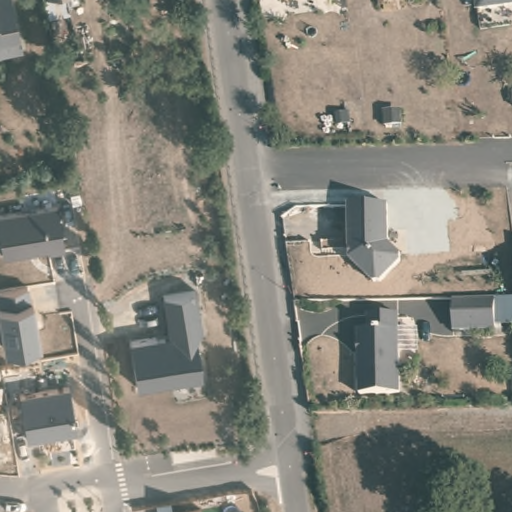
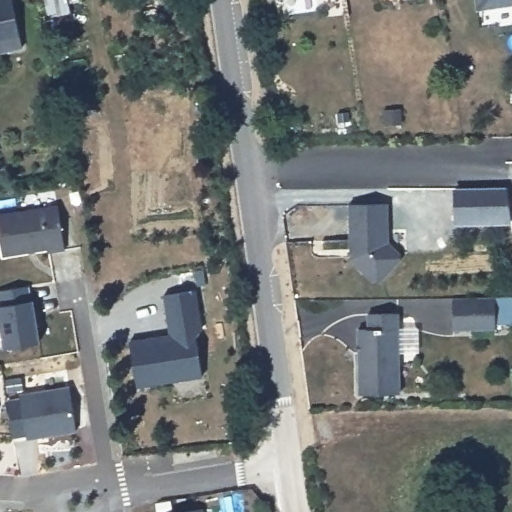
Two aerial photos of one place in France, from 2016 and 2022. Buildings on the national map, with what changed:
unchanged [(11,0),(20,51),(0,55),(0,0),(11,0)]
demolished [(52,172),(52,183),(38,185),(38,172),(52,172)]
new [(453,187),(507,187),(512,214),(512,223),(454,225),(453,187)]
unchanged [(62,207),(70,250),(4,258),(0,239),(0,218),(62,207)]
unchanged [(346,207),(385,207),(386,246),(399,258),(399,266),(382,287),(373,287),(348,264),(346,207)]
unchanged [(512,257),(511,254),(512,253),(512,257)]
unchanged [(138,387),(130,341),(170,335),(165,296),(191,293),(202,378),(138,387)]
unchanged [(493,330),(452,328),(452,297),(494,297),(493,330)]
unchanged [(34,302),(41,342),(3,347),(0,321),(0,308),(34,302)]
unchanged [(367,315),(399,315),(400,393),(360,394),(357,332),(368,333),(367,315)]
unchanged [(69,390),(77,432),(26,440),(22,397),(69,390)]
unchanged [(202,511),(203,512),(196,512),(202,511)]

